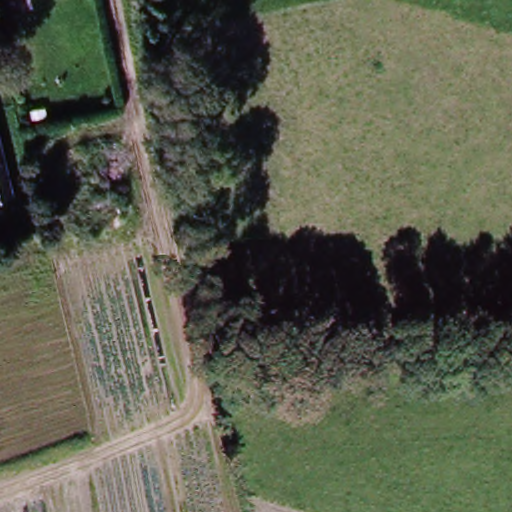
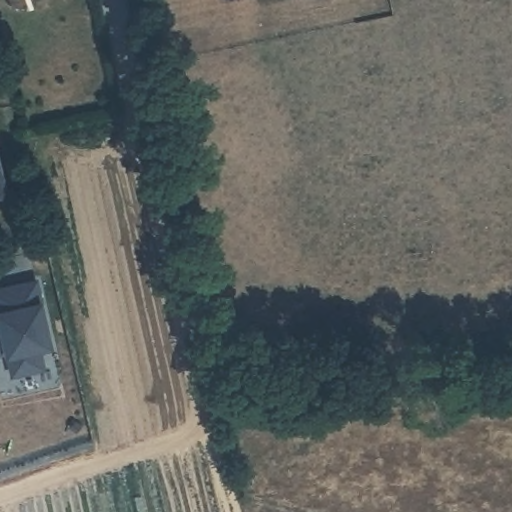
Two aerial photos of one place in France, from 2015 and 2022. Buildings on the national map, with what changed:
unchanged [(6,197),(0,198),(0,172),(6,197)]
new [(0,325),(0,313),(1,313),(0,308),(0,291),(40,282),(55,347),(42,350),(47,370),(15,377),(10,353),(0,356),(0,328),(1,327),(0,325)]

